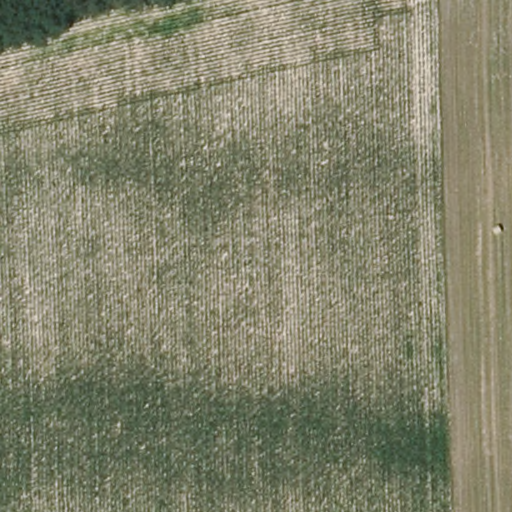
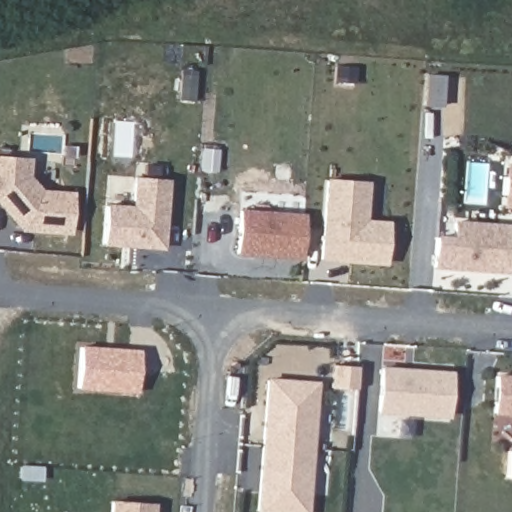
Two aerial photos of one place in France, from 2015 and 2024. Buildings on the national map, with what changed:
new [(21,225),(0,202),(0,162),(29,162),(29,178),(43,193),(74,193),(72,230),(40,230),(27,230),(21,225)]
new [(512,210),(502,209),(505,166),(512,167),(512,210)]
new [(108,246),(111,208),(138,210),(140,179),(171,182),(166,250),(145,248),(135,248),(108,246)]
new [(325,179),(368,182),(366,219),(390,221),(386,267),(320,262),(325,179)]
new [(244,211),(307,216),(305,258),(240,253),(244,211)]
new [(433,270),(435,237),(452,237),(456,221),(511,224),(508,275),(433,270)]
new [(133,384),(132,394),(79,390),(82,350),(140,354),(138,385),(133,384)]
new [(453,372),(450,419),(378,414),(381,366),(453,372)]
new [(512,413),(499,412),(502,376),(512,377),(512,413)]
new [(315,382),(307,512),(258,512),(267,380),(315,382)]
new [(112,501),(155,505),(154,512),(112,512),(112,501)]

